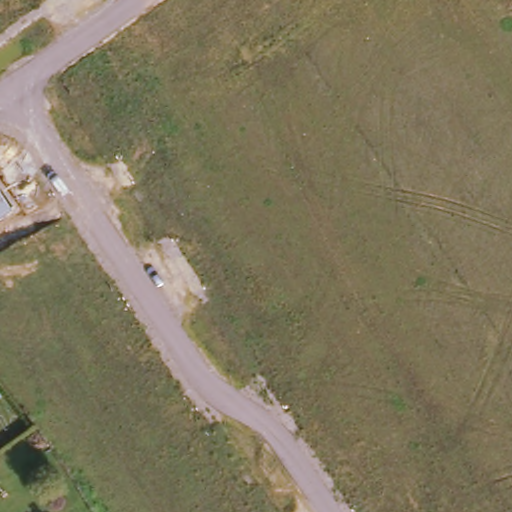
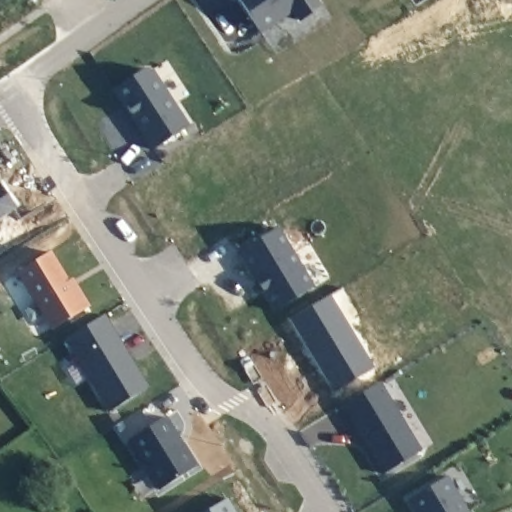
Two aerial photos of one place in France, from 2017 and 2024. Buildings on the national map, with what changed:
new [(322,9),(304,21),(296,11),(264,33),(242,0),(316,0),(322,9)]
new [(113,94),(119,84),(144,70),(152,71),(189,125),(151,150),(113,94)]
unchanged [(0,219),(0,190),(13,210),(0,219)]
new [(239,251),(279,229),(313,287),(272,311),(239,251)]
new [(55,256),(80,297),(83,295),(93,312),(59,333),(25,274),(55,256)]
new [(290,319),(330,296),(373,368),(333,392),(290,319)]
new [(108,321),(152,393),(115,416),(71,343),(108,321)]
new [(338,408),(380,383),(422,451),(382,475),(338,408)]
new [(128,440),(165,418),(196,465),(157,490),(128,440)]
new [(420,512),(415,504),(451,482),(469,512),(420,512)]
new [(234,512),(206,512),(226,499),(234,512)]

